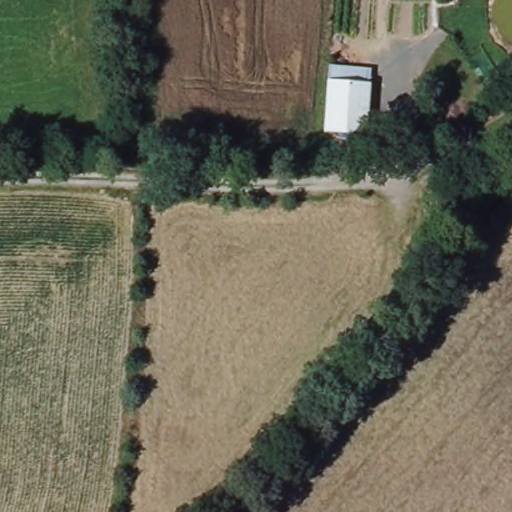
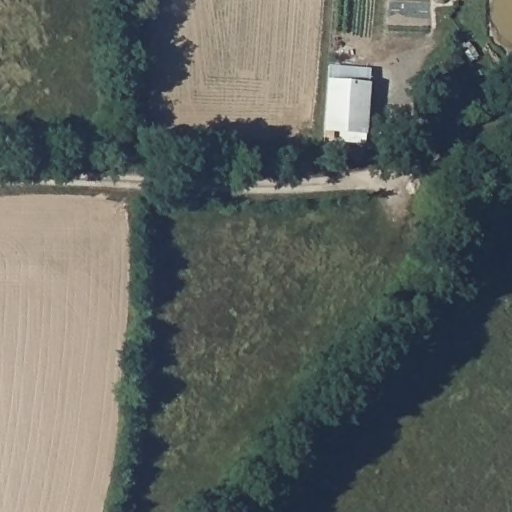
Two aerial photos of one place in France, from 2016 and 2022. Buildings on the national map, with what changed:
unchanged [(372,76),(368,129),(327,126),(330,73),(372,76)]

